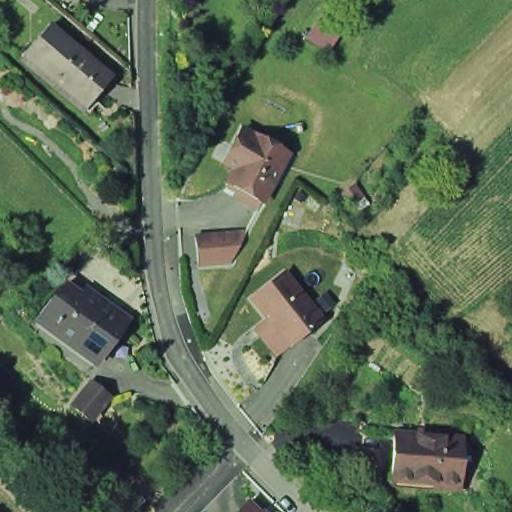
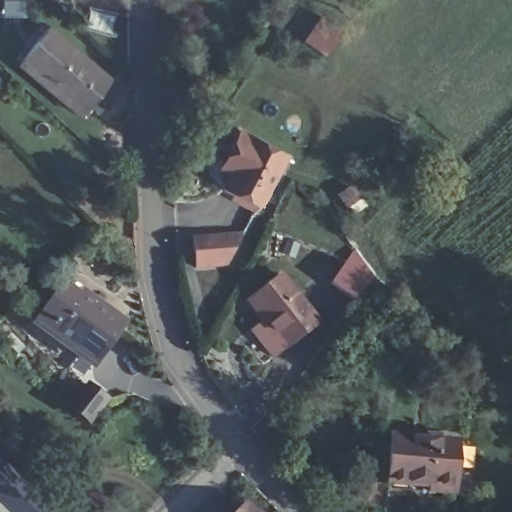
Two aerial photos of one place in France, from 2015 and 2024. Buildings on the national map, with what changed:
unchanged [(52,28),(114,79),(89,109),(28,58),(52,28)]
unchanged [(219,189),(227,173),(216,166),(241,125),(288,150),(258,207),(219,189)]
unchanged [(199,272),(195,239),(241,230),(233,267),(199,272)]
unchanged [(270,365),(249,326),(257,318),(244,296),(284,263),(325,328),(270,365)]
unchanged [(83,300),(87,293),(128,323),(97,365),(39,323),(65,287),(83,300)]
unchanged [(88,417),(71,403),(77,396),(87,382),(106,396),(93,412),(88,417)]
unchanged [(387,491),(385,435),(466,440),(463,495),(387,491)]
unchanged [(246,505),(252,512),(239,512),(246,505)]

